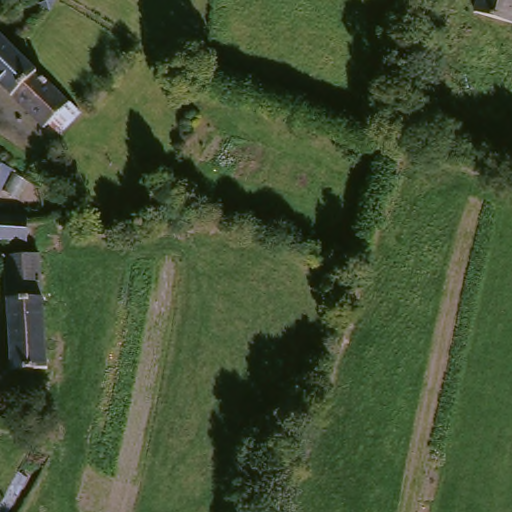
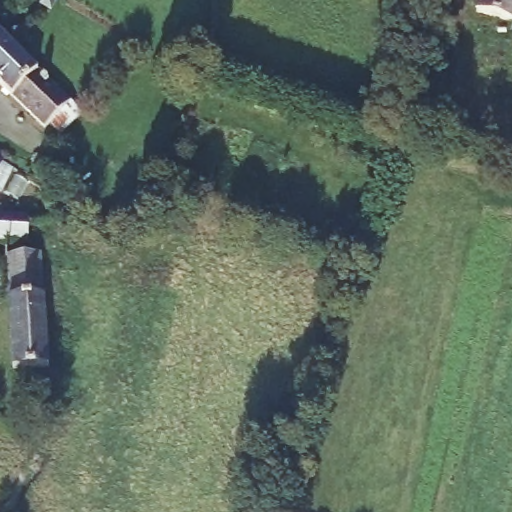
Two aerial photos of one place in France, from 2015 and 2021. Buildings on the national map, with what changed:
unchanged [(473,15),(478,0),(512,0),(512,26),(473,15)]
unchanged [(43,16),(51,19),(49,24),(46,32),(33,27),(37,14),(43,16)]
unchanged [(0,91),(0,42),(77,112),(53,139),(0,91)]
unchanged [(0,176),(0,163),(6,167),(0,176)]
unchanged [(0,250),(0,222),(13,223),(26,224),(24,252),(0,250)]
unchanged [(37,260),(38,297),(43,297),(45,371),(11,371),(9,298),(13,298),(13,256),(37,256),(37,260)]

